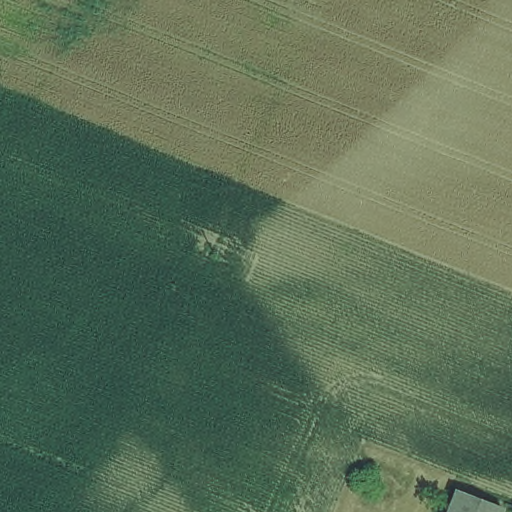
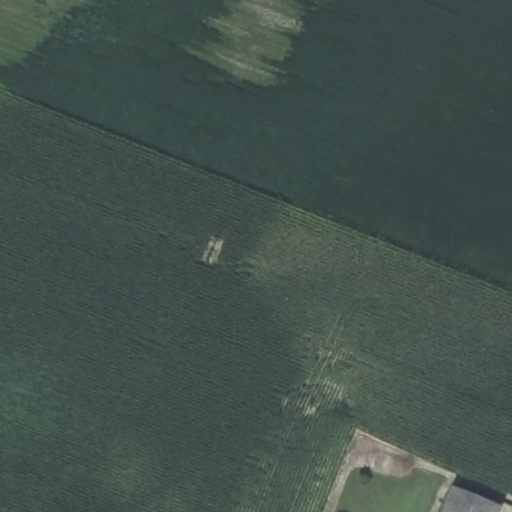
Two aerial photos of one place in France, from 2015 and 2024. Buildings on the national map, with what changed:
unchanged [(500,507),(498,512),(441,512),(452,486),(500,507)]

